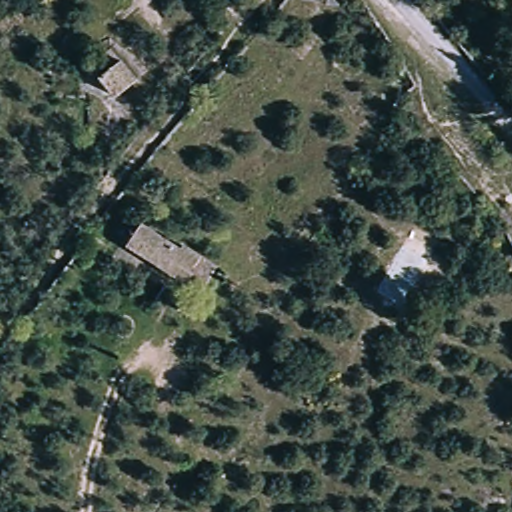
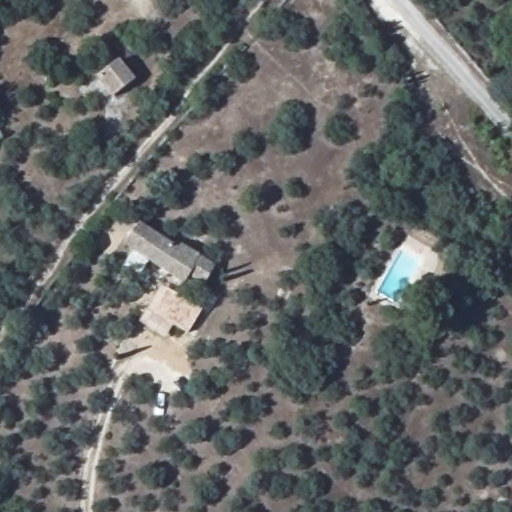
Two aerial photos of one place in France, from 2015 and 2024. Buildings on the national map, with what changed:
unchanged [(118,62),(133,83),(113,99),(95,76),(118,62)]
unchanged [(188,275),(185,279),(123,243),(133,224),(178,247),(180,245),(213,264),(203,284),(188,275)]
new [(187,322),(173,315),(172,318),(150,306),(160,287),(196,306),(187,322)]
demolished [(208,308),(201,320),(190,314),(196,302),(208,308)]

